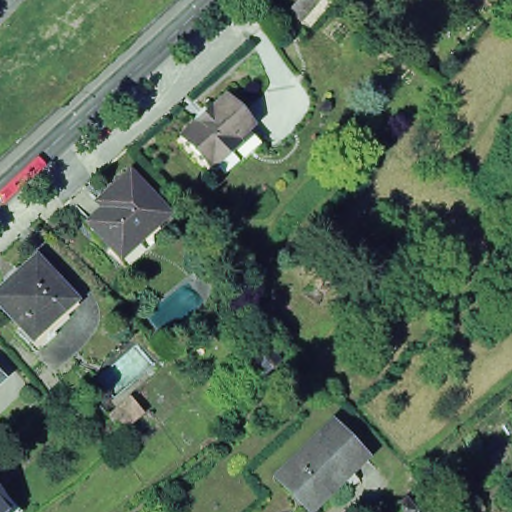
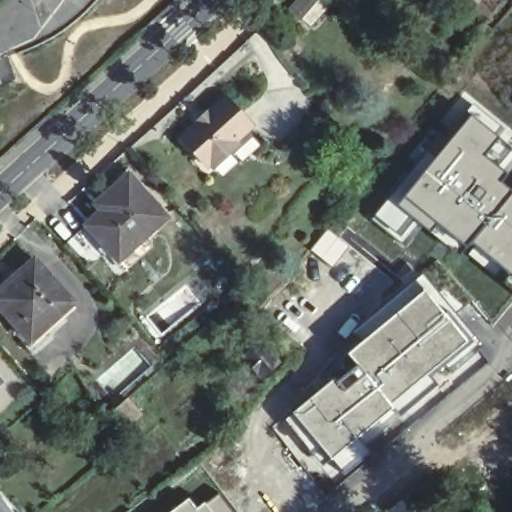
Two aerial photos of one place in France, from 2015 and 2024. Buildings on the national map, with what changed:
unchanged [(312,27),(308,24),(302,18),(291,9),(298,0),(335,0),(312,27)]
unchanged [(243,162),(232,150),(213,167),(210,164),(208,166),(197,154),(181,137),(225,96),(236,108),(252,126),(248,130),(262,145),(243,162)]
new [(387,197),(415,166),(407,159),(432,130),(445,141),(474,106),(503,129),(496,137),(512,151),(512,170),(500,184),(511,194),(512,193),(512,303),(507,309),(453,263),(465,249),(432,225),(427,235),(420,229),(403,246),(372,219),(387,197)]
unchanged [(115,199),(109,192),(128,175),(166,217),(118,260),(87,224),(115,199)]
new [(327,227),(350,246),(332,268),(309,251),(327,227)]
unchanged [(54,342),(34,360),(26,351),(30,346),(0,312),(0,295),(35,263),(74,307),(61,319),(67,325),(52,339),(54,342)]
new [(358,326),(417,277),(425,287),(432,285),(480,342),(475,346),(482,355),(400,419),(393,411),(354,363),(345,353),(365,334),(358,326)]
unchanged [(260,343),(277,362),(262,375),(245,357),(260,343)]
new [(282,419),(331,379),(354,363),(393,411),(357,440),(368,452),(342,474),(318,447),(308,454),(302,446),(293,452),(272,427),(282,419)]
unchanged [(0,390),(0,380),(5,386),(0,390)]
unchanged [(127,397),(139,410),(118,429),(107,416),(127,397)]
demolished [(367,457),(364,455),(342,476),(345,479),(313,510),(312,508),(317,503),(302,488),(297,493),(285,482),(281,477),(337,422),(342,428),(369,455),(367,457)]
unchanged [(0,496),(15,512),(1,512),(0,510),(0,496)]
new [(195,506),(202,501),(210,512),(165,512),(188,496),(195,506)]
unchanged [(405,498),(416,512),(388,512),(387,512),(405,498)]
unchanged [(0,512),(0,510),(1,512),(0,512)]

